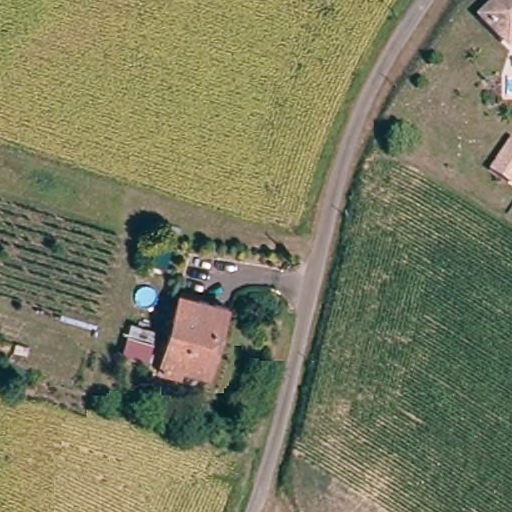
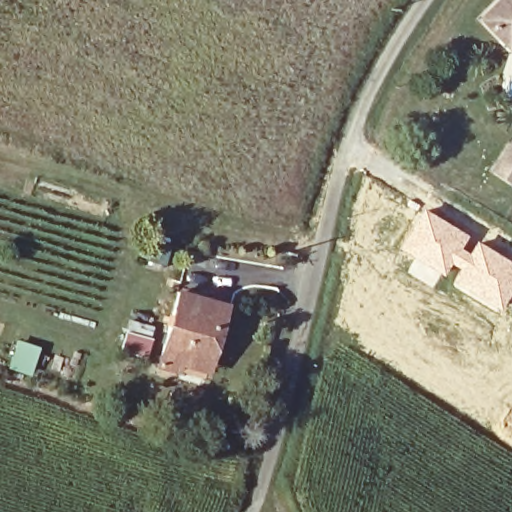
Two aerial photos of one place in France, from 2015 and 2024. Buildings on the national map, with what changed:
unchanged [(479,27),(498,0),(512,0),(512,45),(511,47),(498,39),(479,27)]
unchanged [(511,139),(512,139),(512,185),(490,171),(511,139)]
new [(422,207),(468,235),(460,247),(467,252),(457,268),(449,264),(434,287),(406,272),(414,258),(398,248),(422,207)]
new [(457,268),(467,252),(475,240),(512,262),(512,290),(498,312),(449,282),(457,268)]
unchanged [(148,367),(150,358),(118,348),(124,330),(155,340),(171,290),(219,305),(212,332),(201,367),(189,364),(170,358),(166,372),(148,367)]

